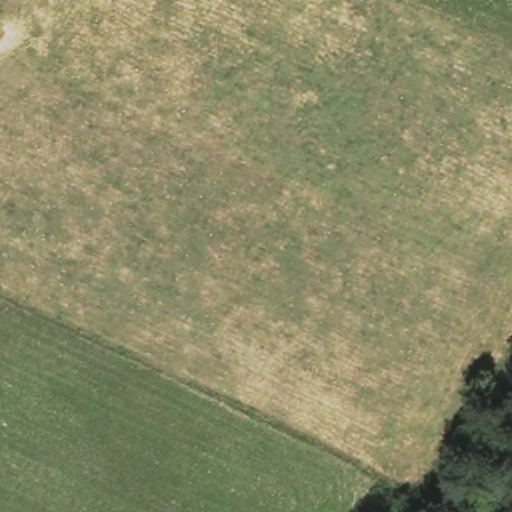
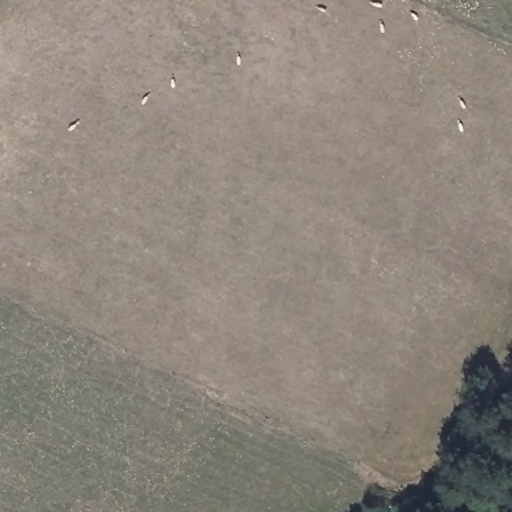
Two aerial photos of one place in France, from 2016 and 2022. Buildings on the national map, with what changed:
[]

